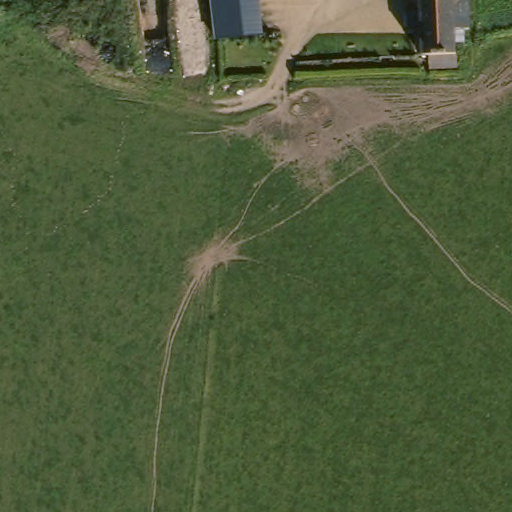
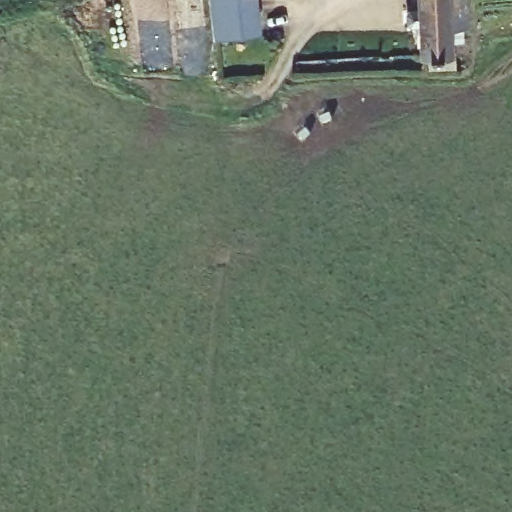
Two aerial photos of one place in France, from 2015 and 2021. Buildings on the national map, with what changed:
unchanged [(212,45),(208,0),(251,0),(253,41),(212,45)]
unchanged [(473,0),(474,36),(461,37),(460,69),(426,64),(422,0),(473,0)]

